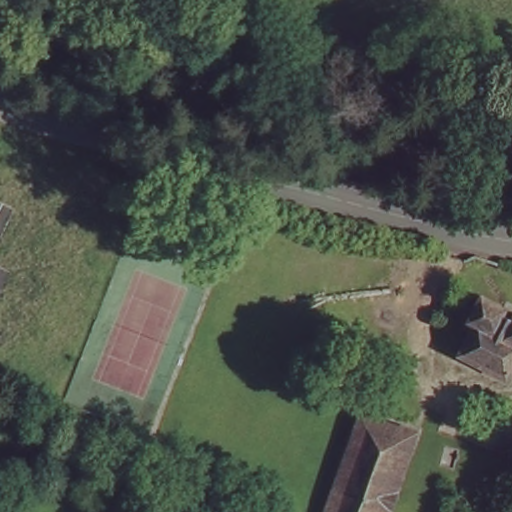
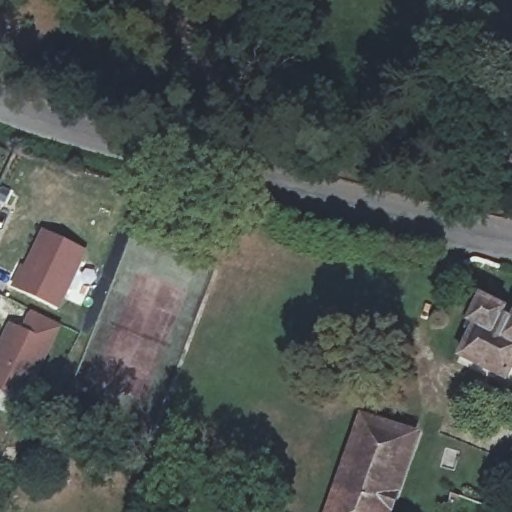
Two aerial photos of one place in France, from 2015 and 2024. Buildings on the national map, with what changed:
new [(88,251),(60,310),(10,287),(21,264),(24,266),(42,230),(88,251)]
unchanged [(510,312),(507,318),(512,321),(512,374),(509,380),(465,358),(476,333),(470,330),(485,301),(510,312)]
new [(0,387),(0,344),(10,324),(22,330),(32,311),(57,323),(21,397),(0,387)]
unchanged [(371,423),(410,439),(385,512),(340,512),(371,423)]

